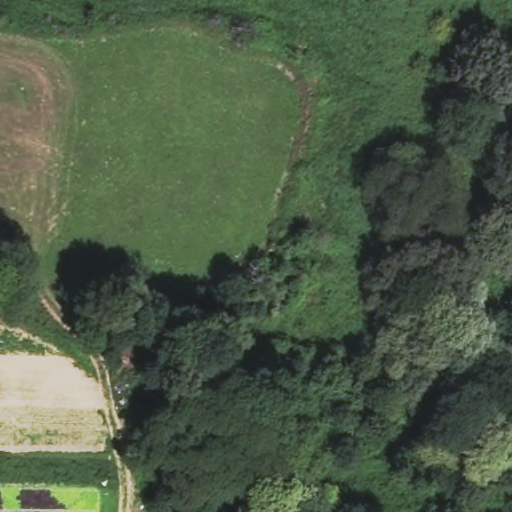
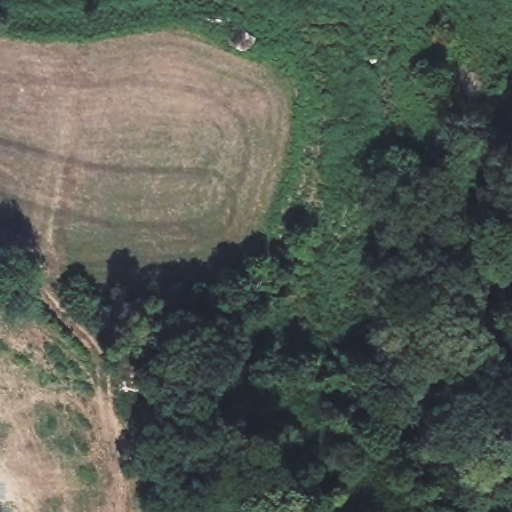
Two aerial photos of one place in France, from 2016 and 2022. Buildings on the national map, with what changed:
[]

